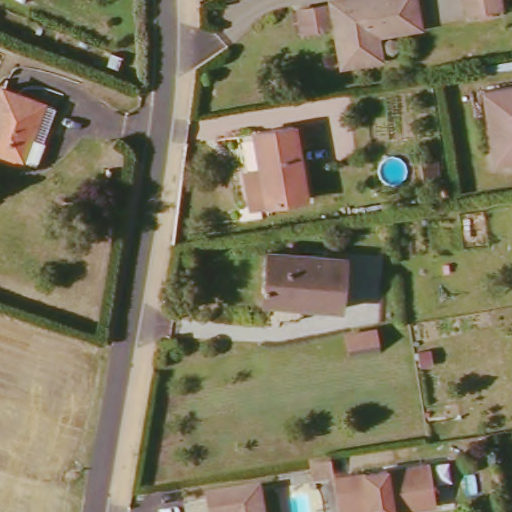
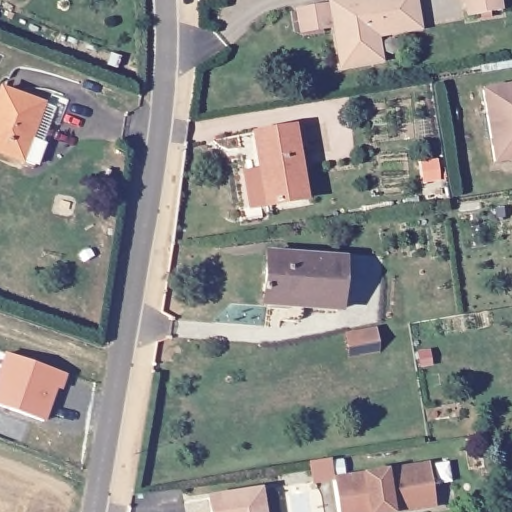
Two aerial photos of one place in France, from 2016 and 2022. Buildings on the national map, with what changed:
unchanged [(357,0),(417,0),(422,29),(374,37),(377,63),(344,66),(335,3),(357,0)]
unchanged [(506,15),(470,22),(466,0),(503,0),(506,15)]
unchanged [(331,9),(334,29),(305,32),(303,13),(331,9)]
unchanged [(0,155),(0,97),(3,88),(54,104),(64,110),(45,171),(0,155)]
unchanged [(512,88),(512,165),(504,166),(493,90),(512,88)]
unchanged [(266,173),(259,132),(304,125),(308,148),(300,149),(309,202),(256,210),(249,174),(266,173)]
new [(438,162),(440,180),(424,182),(422,163),(438,162)]
unchanged [(267,295),(262,294),(267,253),(344,259),(341,307),(304,305),(298,322),(280,322),(280,308),(267,309),(267,295)]
unchanged [(360,330),(363,353),(340,356),(337,333),(360,330)]
unchanged [(420,351),(420,360),(410,361),(409,351),(420,351)]
new [(63,390),(57,389),(46,423),(0,406),(0,365),(5,352),(67,373),(63,390)]
unchanged [(317,461),(341,457),(344,480),(436,464),(442,503),(401,509),(402,512),(348,512),(344,484),(320,488),(317,461)]
unchanged [(268,512),(214,512),(212,496),(264,487),(268,512)]

